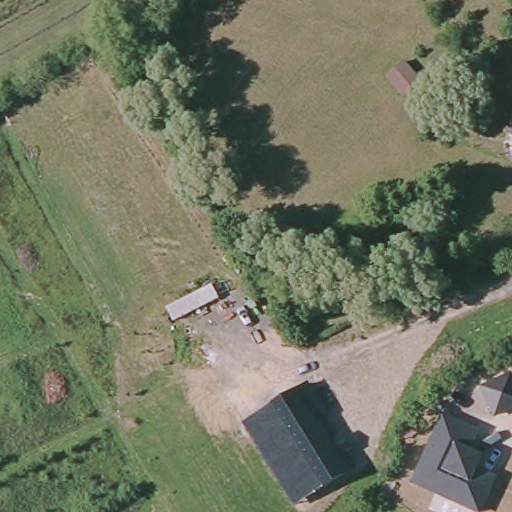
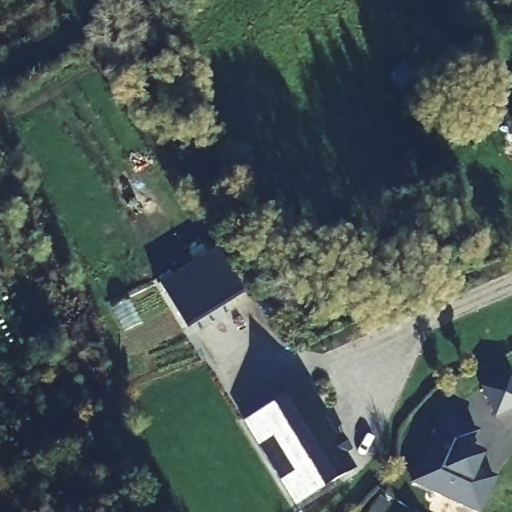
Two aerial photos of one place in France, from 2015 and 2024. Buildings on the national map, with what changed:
new [(175,261),(205,242),(211,251),(217,247),(245,292),(185,328),(158,283),(180,270),(175,261)]
unchanged [(512,410),(494,418),(480,386),(511,373),(512,376),(512,410)]
unchanged [(293,507),(242,422),(308,383),(357,470),(293,507)]
unchanged [(475,512),(410,485),(443,414),(480,431),(471,450),(482,455),(477,470),(497,478),(483,512),(475,512)]

